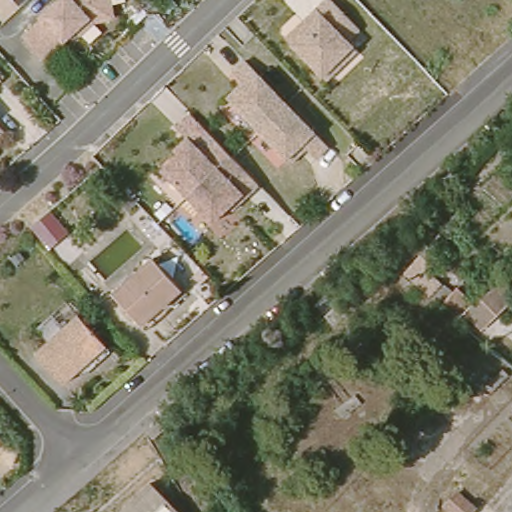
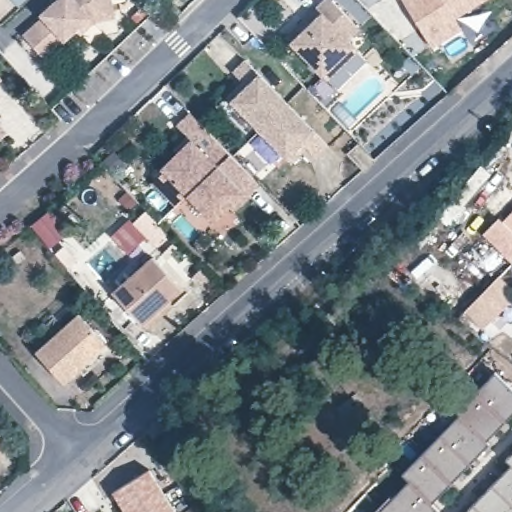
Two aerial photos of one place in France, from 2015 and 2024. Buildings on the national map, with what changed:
unchanged [(79,34),(75,29),(44,59),(22,35),(42,16),(40,14),(55,0),(109,0),(112,10),(113,16),(93,20),(79,34)]
unchanged [(301,16),(308,24),(333,0),(334,0),(365,32),(353,43),(359,49),(327,79),(284,33),(301,16)]
new [(497,0),(453,27),(459,37),(430,54),(398,2),(401,0),(497,0)]
unchanged [(334,150),(321,162),(307,148),(292,162),(236,104),(232,99),(248,84),(238,74),(251,63),(334,150)]
unchanged [(283,171),(227,113),(236,104),(292,162),(283,171)]
unchanged [(262,182),(246,198),(221,222),(167,166),(193,138),(179,128),(194,114),(262,182)]
unchanged [(0,136),(0,128),(4,133),(0,136)]
new [(511,263),(482,233),(499,217),(502,222),(512,211),(512,262),(511,263)]
unchanged [(92,260),(77,274),(69,264),(83,251),(92,260)]
unchanged [(184,283),(143,319),(115,288),(155,252),(184,283)]
unchanged [(439,264),(421,284),(406,270),(425,253),(439,264)]
unchanged [(484,340),(457,314),(498,275),(512,294),(512,310),(484,340)]
unchanged [(108,340),(65,379),(37,348),(80,309),(108,340)]
unchanged [(360,320),(348,333),(336,323),(348,310),(360,320)]
new [(390,494),(392,497),(409,479),(402,472),(460,413),(457,410),(497,371),(512,385),(512,415),(488,440),(491,443),(432,502),(440,509),(438,512),(372,512),(390,494)]
unchanged [(165,425),(155,435),(146,429),(159,418),(165,425)]
unchanged [(0,436),(0,433),(1,434),(0,436)]
new [(509,459),(512,455),(512,463),(509,459)]
new [(114,488),(149,466),(177,512),(128,512),(114,488)]
new [(512,467),(512,512),(467,512),(512,467)]
demolished [(189,512),(120,512),(151,478),(189,512)]
demolished [(457,483),(473,498),(461,509),(445,494),(457,483)]

